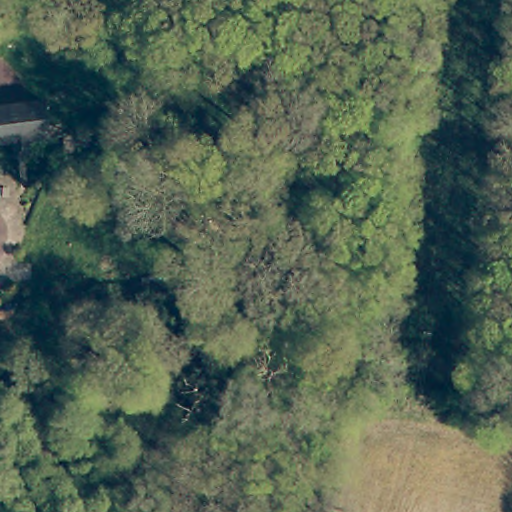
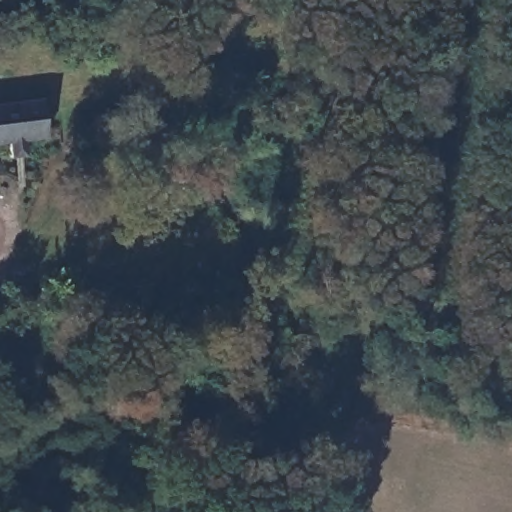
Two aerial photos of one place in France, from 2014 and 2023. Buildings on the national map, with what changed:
unchanged [(0,105),(33,101),(36,138),(14,140),(15,154),(15,156),(0,158),(0,105)]

